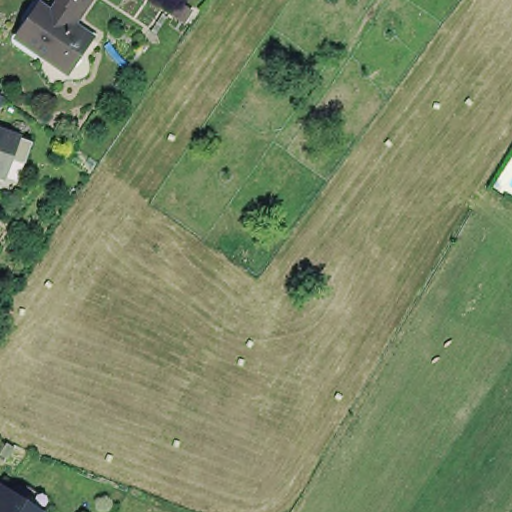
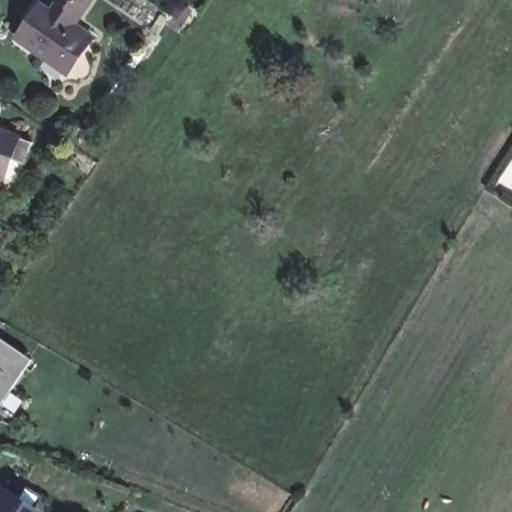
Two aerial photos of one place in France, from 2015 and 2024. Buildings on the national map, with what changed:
unchanged [(17,37),(28,19),(24,17),(35,0),(48,9),(54,0),(83,0),(76,11),(75,10),(69,19),(90,33),(79,49),(77,48),(67,63),(64,68),(45,56),(17,37)]
unchanged [(0,113),(0,95),(7,100),(0,113)]
unchanged [(10,156),(1,176),(0,176),(0,129),(18,137),(10,156)]
new [(0,403),(0,342),(31,362),(0,403)]
unchanged [(43,512),(0,512),(0,482),(45,508),(43,512)]

